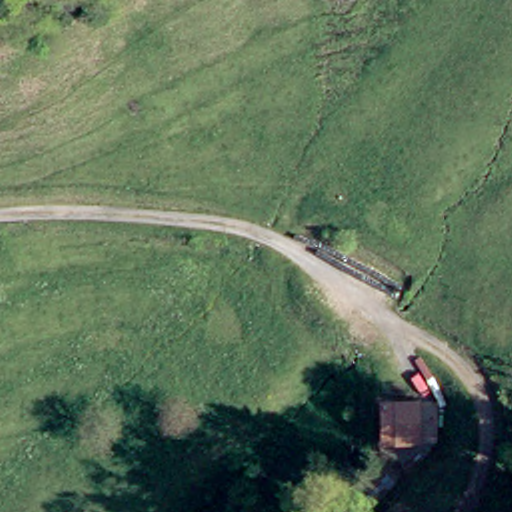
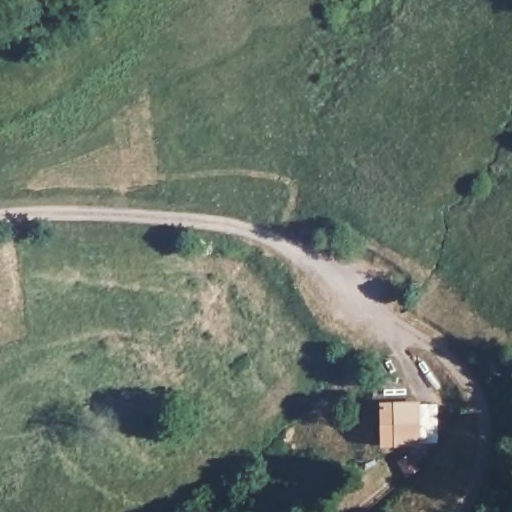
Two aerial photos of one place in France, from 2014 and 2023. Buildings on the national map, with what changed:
unchanged [(420,400),(420,448),(380,446),(380,401),(420,400)]

